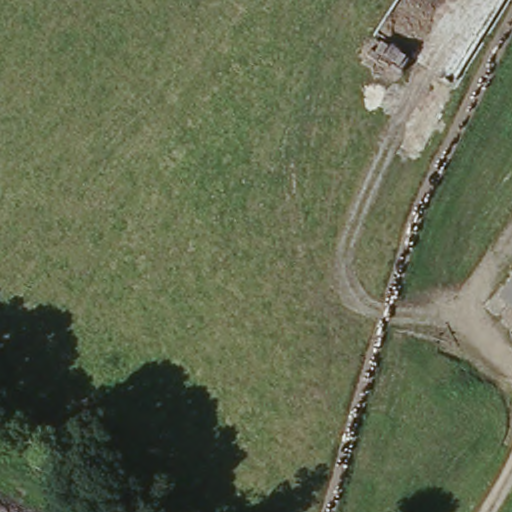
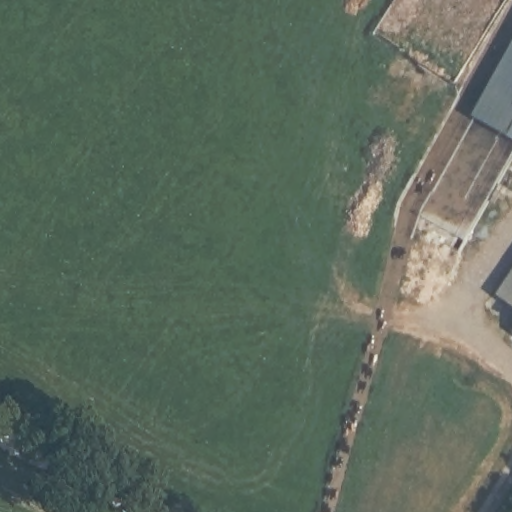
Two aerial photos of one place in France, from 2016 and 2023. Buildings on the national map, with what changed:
new [(512,51),(512,137),(475,118),(512,51)]
unchanged [(512,274),(512,310),(495,299),(512,274)]

